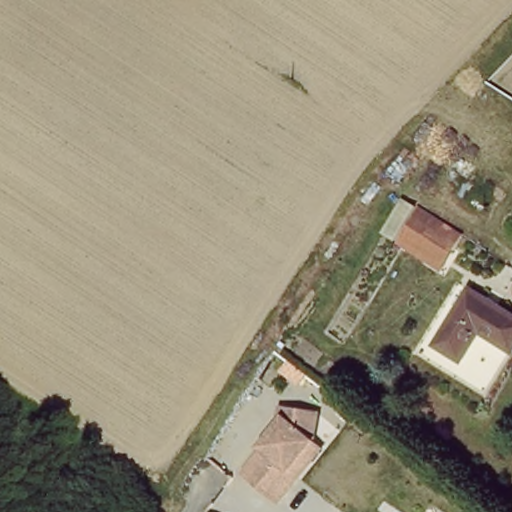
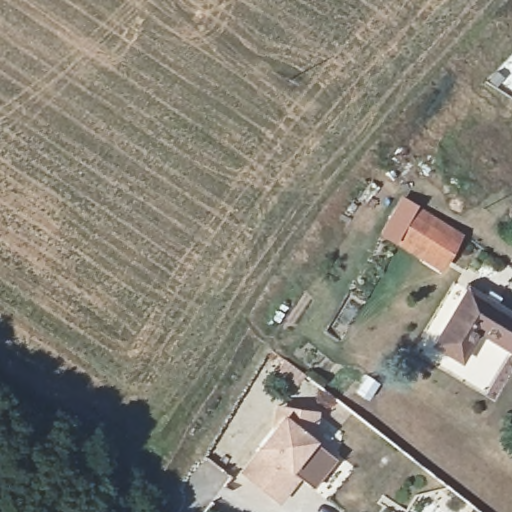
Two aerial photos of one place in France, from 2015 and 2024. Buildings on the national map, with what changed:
unchanged [(417,253),(402,243),(422,214),(459,239),(449,253),(440,267),(417,253)]
unchanged [(432,338),(470,284),(512,312),(512,347),(511,348),(479,328),(460,355),(432,338)]
unchanged [(272,503),(250,485),(236,474),(256,449),(254,448),(270,427),(273,408),(279,409),(297,412),(311,414),(307,442),(315,449),(293,477),(272,503)]

